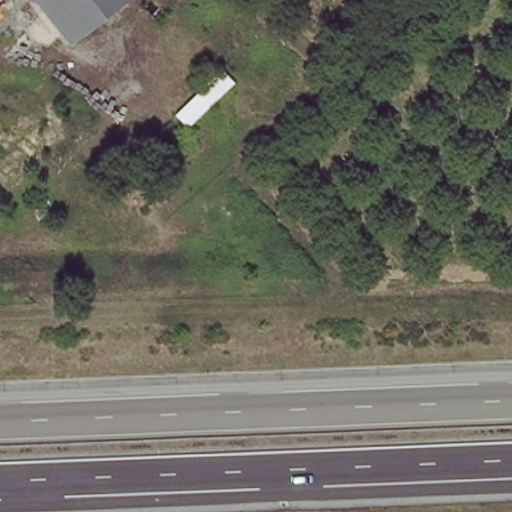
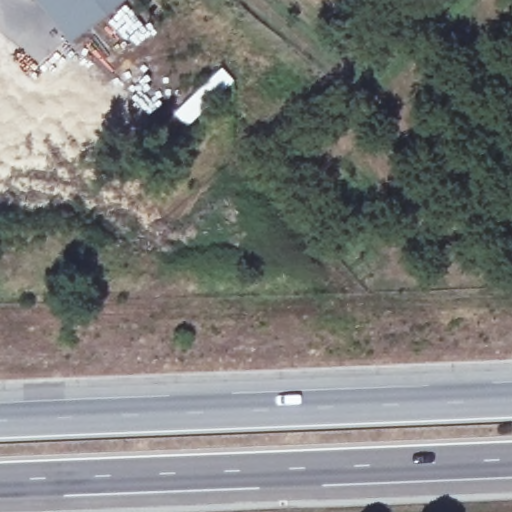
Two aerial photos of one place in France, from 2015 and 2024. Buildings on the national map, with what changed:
unchanged [(65,46),(29,0),(127,0),(65,46)]
unchanged [(171,112),(218,68),(235,83),(188,126),(171,112)]

